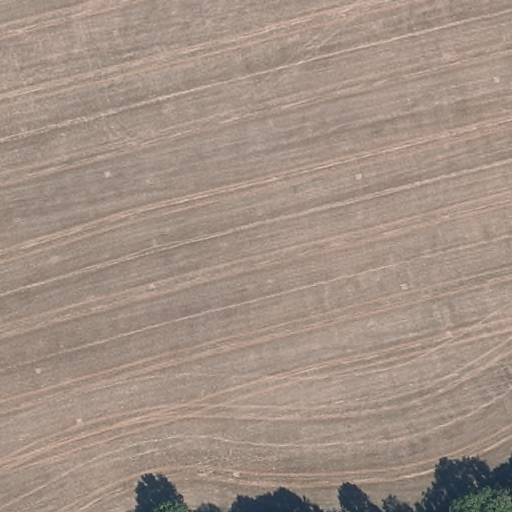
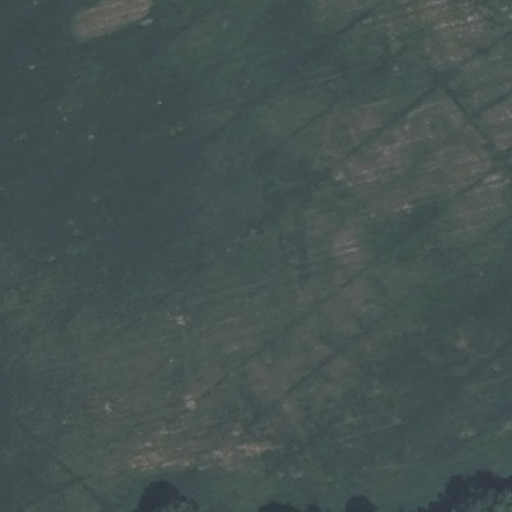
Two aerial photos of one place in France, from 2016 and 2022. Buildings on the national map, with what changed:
[]

